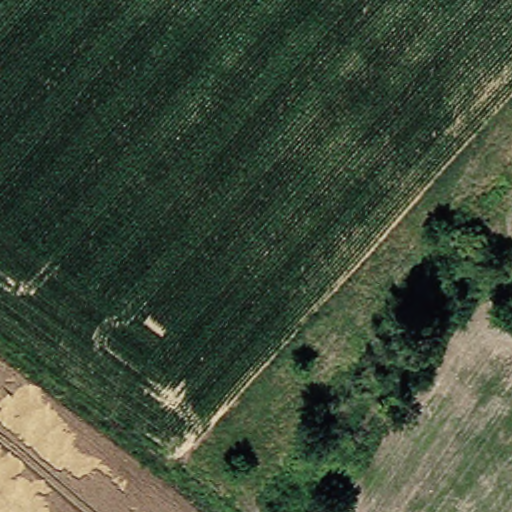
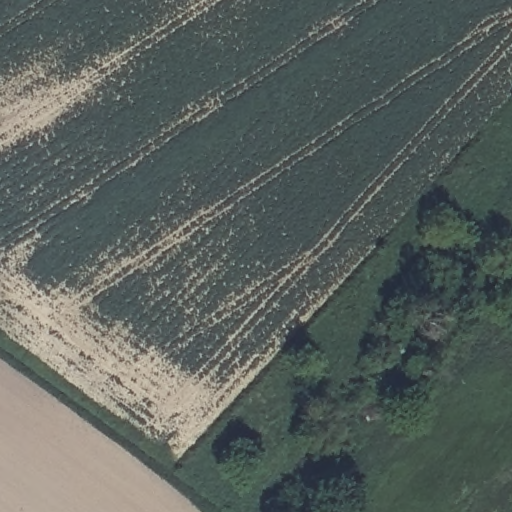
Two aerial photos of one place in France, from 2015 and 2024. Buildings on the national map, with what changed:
[]

